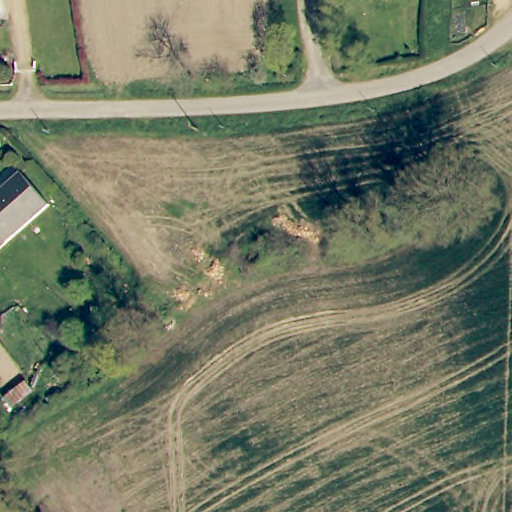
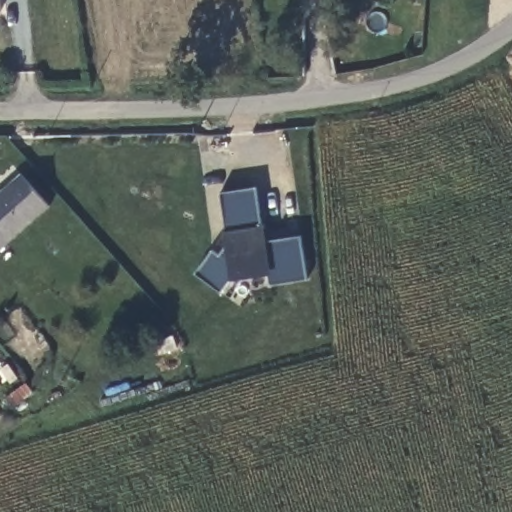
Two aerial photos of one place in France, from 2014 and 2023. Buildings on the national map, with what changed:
unchanged [(25,175),(54,207),(0,256),(0,197),(25,175)]
new [(255,187),(262,225),(264,225),(267,243),(301,236),(307,278),(271,284),(270,272),(243,278),(239,283),(234,278),(231,279),(221,291),(196,272),(211,250),(219,255),(225,246),(223,230),(226,230),(220,193),(255,187)]

